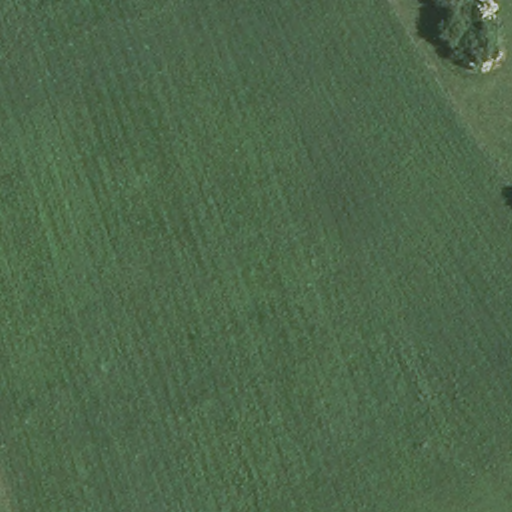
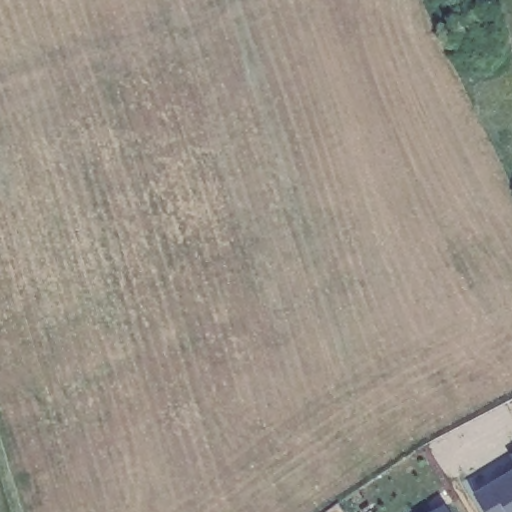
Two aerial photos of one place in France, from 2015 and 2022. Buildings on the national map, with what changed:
new [(485,512),(475,493),(512,471),(512,512),(485,512)]
new [(448,512),(434,512),(445,505),(448,512)]

